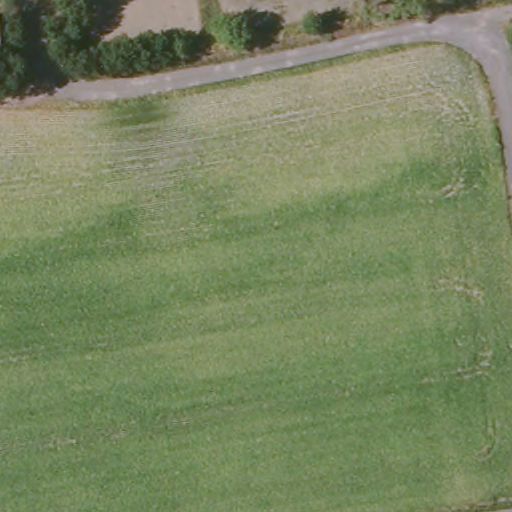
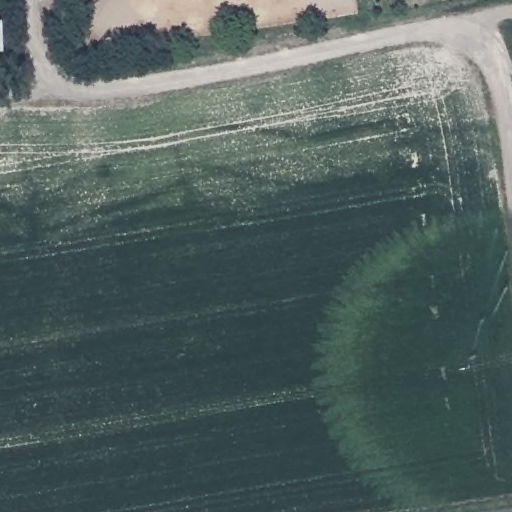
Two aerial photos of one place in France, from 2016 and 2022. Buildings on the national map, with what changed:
unchanged [(2,51),(0,51),(0,27),(0,26),(2,51)]

